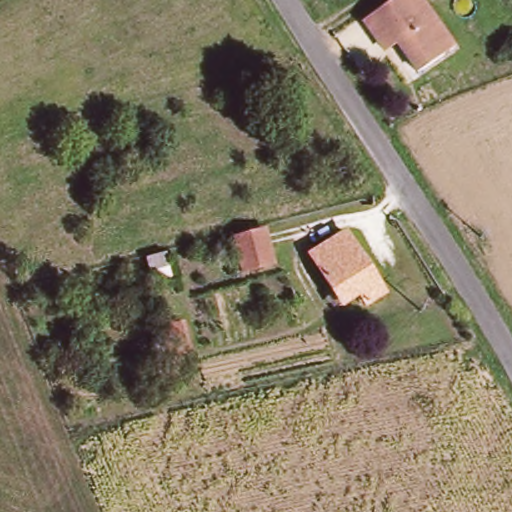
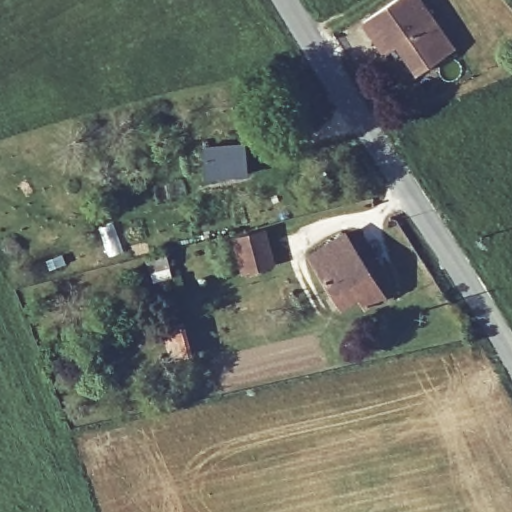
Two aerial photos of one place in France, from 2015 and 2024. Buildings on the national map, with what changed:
unchanged [(361,21),(392,0),(420,0),(454,47),(416,72),(394,41),(380,49),(371,36),(361,21)]
new [(246,141),(249,178),(203,182),(201,145),(246,141)]
unchanged [(368,300),(362,291),(346,300),(313,250),(347,229),(386,289),(368,300)]
unchanged [(275,263),(249,271),(241,237),(267,231),(275,263)]
unchanged [(164,249),(167,262),(146,268),(142,254),(164,249)]
unchanged [(182,318),(191,352),(171,357),(162,323),(182,318)]

